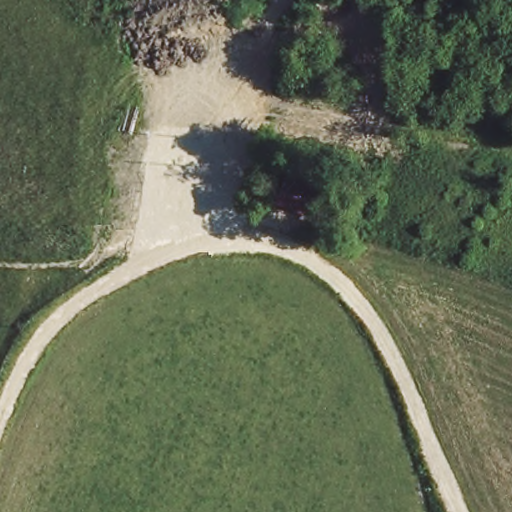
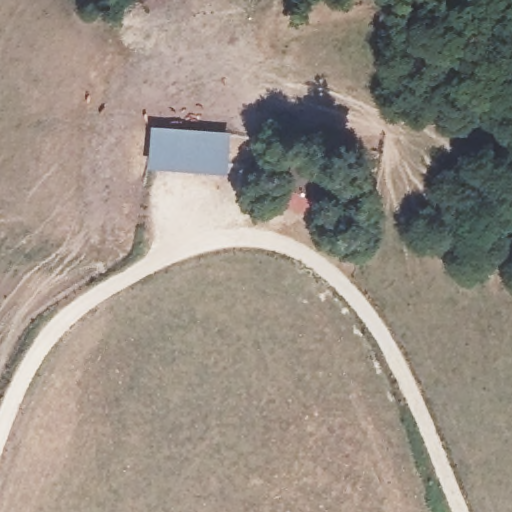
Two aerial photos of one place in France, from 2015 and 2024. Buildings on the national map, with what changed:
new [(150,125),(230,131),(226,173),(148,167),(150,125)]
unchanged [(296,155),(336,178),(319,206),(281,185),(296,155)]

